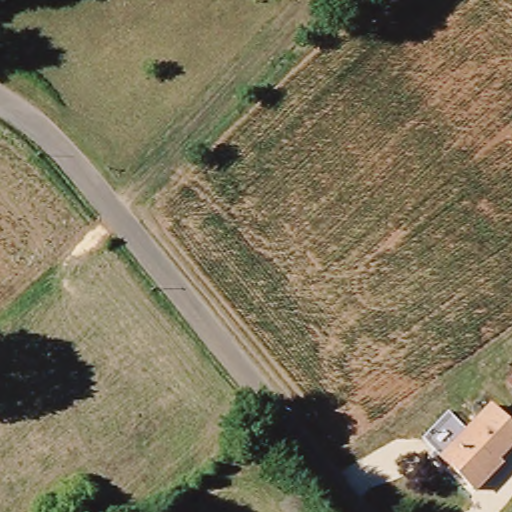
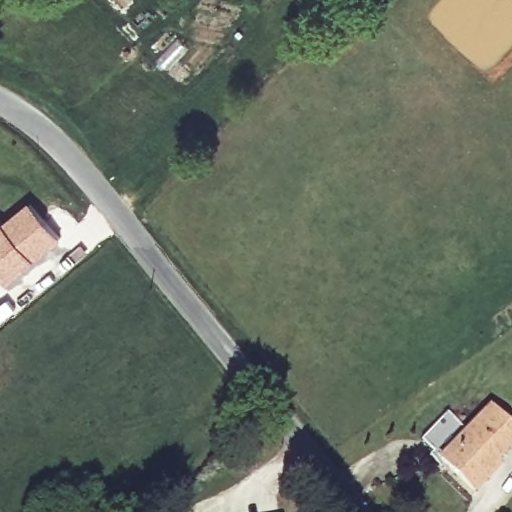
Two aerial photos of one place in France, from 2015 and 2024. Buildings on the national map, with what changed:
new [(32,202),(61,237),(7,282),(0,274),(0,229),(32,202)]
demolished [(512,376),(512,394),(503,385),(512,376)]
unchanged [(512,430),(512,449),(498,462),(504,468),(473,497),(437,460),(487,406),(512,430)]

